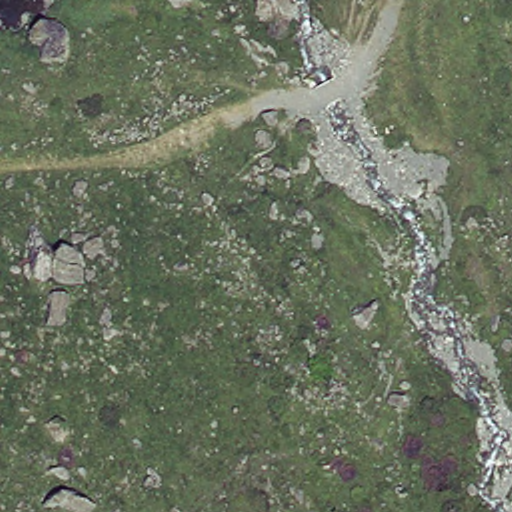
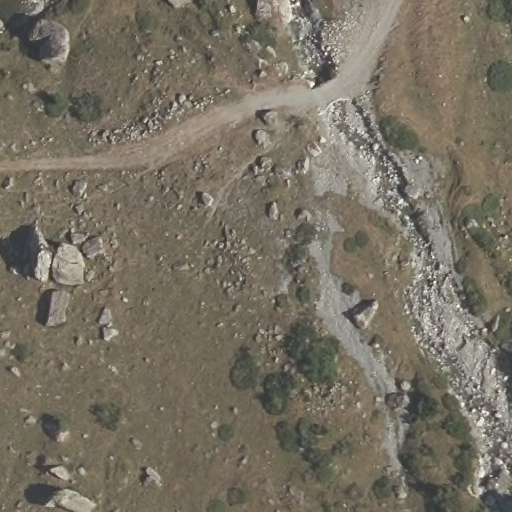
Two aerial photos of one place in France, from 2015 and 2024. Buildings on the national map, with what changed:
unchanged [(80,280),(54,278),(60,245),(82,247),(80,280)]
unchanged [(74,333),(52,330),(52,295),(74,296),(74,333)]

